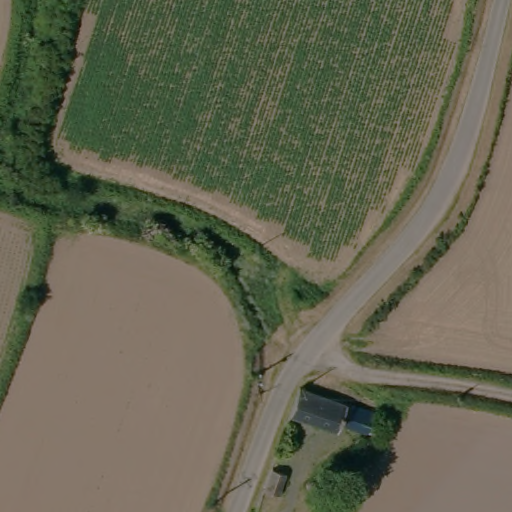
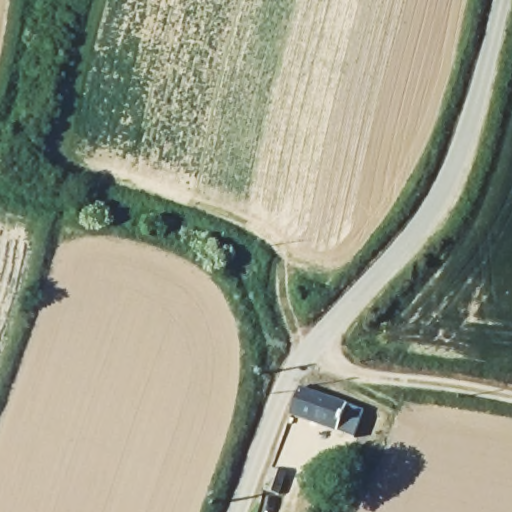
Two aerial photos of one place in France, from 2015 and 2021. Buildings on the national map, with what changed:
unchanged [(376,409),(372,425),(346,420),(343,430),(293,417),(301,393),(376,409)]
unchanged [(270,512),(251,512),(258,490),(276,495),(270,512)]

